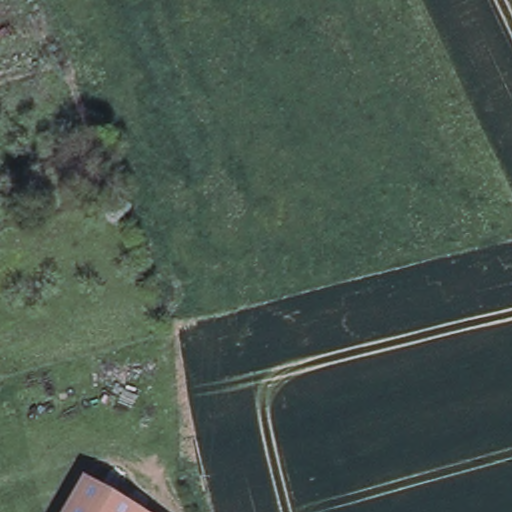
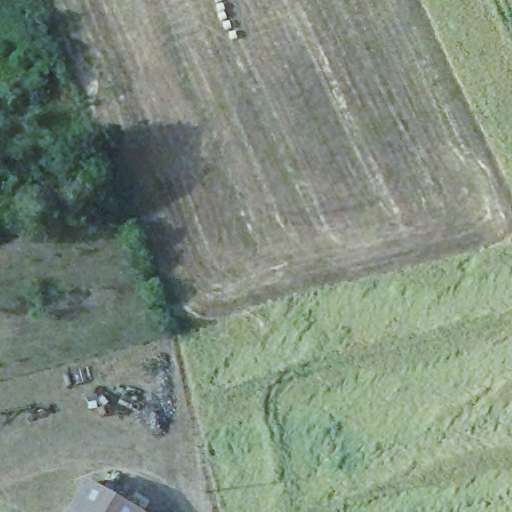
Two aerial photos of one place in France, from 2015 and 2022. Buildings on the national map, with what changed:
unchanged [(86,478),(148,512),(67,512),(86,478)]

